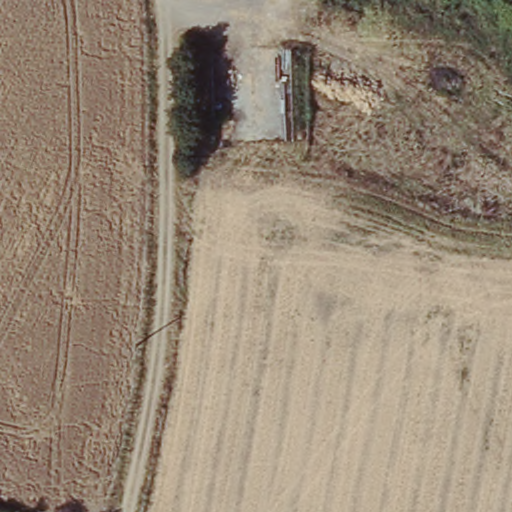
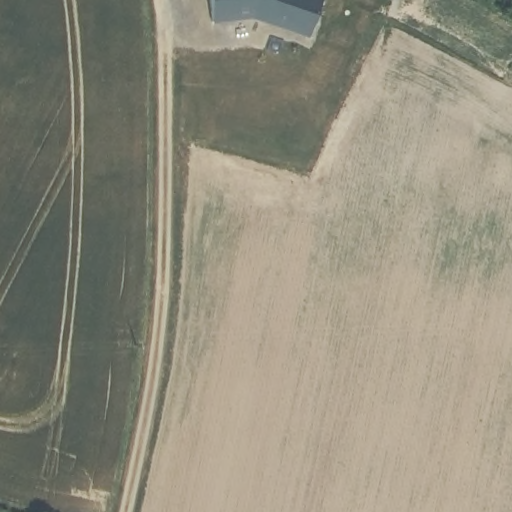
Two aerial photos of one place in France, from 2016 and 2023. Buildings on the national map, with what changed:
demolished [(191,2),(191,0),(204,0),(203,4),(191,2)]
new [(252,20),(212,22),(210,0),(321,0),(308,37),(252,20)]

